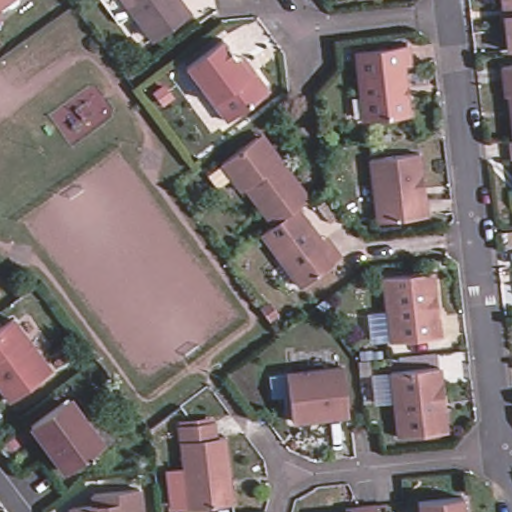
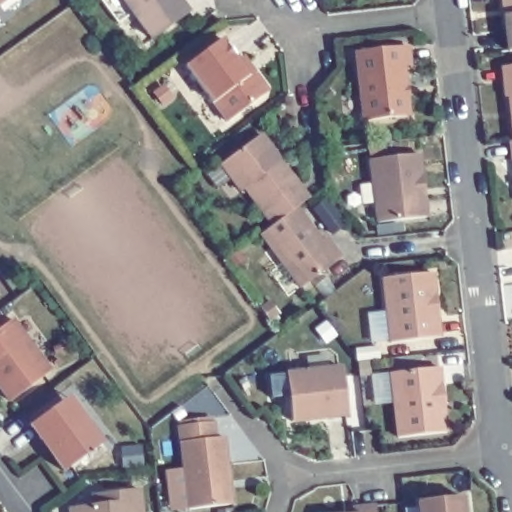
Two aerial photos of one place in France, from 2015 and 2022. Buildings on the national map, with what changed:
unchanged [(0,4),(0,0),(5,0),(0,4)]
unchanged [(102,0),(183,0),(195,16),(157,43),(138,17),(123,27),(102,0)]
unchanged [(506,22),(511,21),(510,9),(503,4),(503,0),(512,0),(512,55),(510,55),(506,22)]
unchanged [(244,59),(255,75),(265,88),(262,98),(227,125),(185,69),(221,41),(238,64),(244,59)]
unchanged [(412,68),(405,69),(410,118),(367,123),(360,56),(410,51),(412,68)]
unchanged [(506,101),(503,71),(512,70),(512,109),(511,101),(506,101)]
unchanged [(243,197),(223,170),(259,143),(263,140),(281,164),(311,204),(298,213),(274,230),(247,194),(243,197)]
unchanged [(418,181),(413,182),(415,200),(421,200),(423,222),(375,227),(368,164),(416,159),(418,181)]
unchanged [(322,247),(328,243),(333,251),(343,264),(303,293),(262,238),(274,230),(298,213),(322,247)]
unchanged [(437,300),(433,301),(435,321),(440,321),(442,343),(394,348),(386,283),(435,278),(437,300)]
unchanged [(283,306),(276,311),(268,299),(275,294),(283,306)]
unchanged [(49,378),(10,408),(0,394),(0,333),(10,326),(49,378)]
unchanged [(295,427),(292,401),(275,403),(272,382),(290,380),(345,373),(350,421),(295,427)]
unchanged [(443,391),(439,392),(441,416),(445,416),(448,439),(400,444),(394,379),(441,374),(443,391)]
unchanged [(80,428),(85,424),(100,444),(63,474),(52,459),(57,456),(44,437),(39,441),(28,427),(60,402),(80,428)]
unchanged [(226,444),(234,511),(226,512),(191,512),(182,434),(216,430),(217,444),(226,444)]
unchanged [(98,507),(97,495),(143,490),(145,512),(75,512),(75,510),(98,507)]
unchanged [(460,494),(463,512),(419,512),(418,499),(460,494)]
unchanged [(359,504),(375,502),(376,512),(346,512),(346,505),(359,504)]

